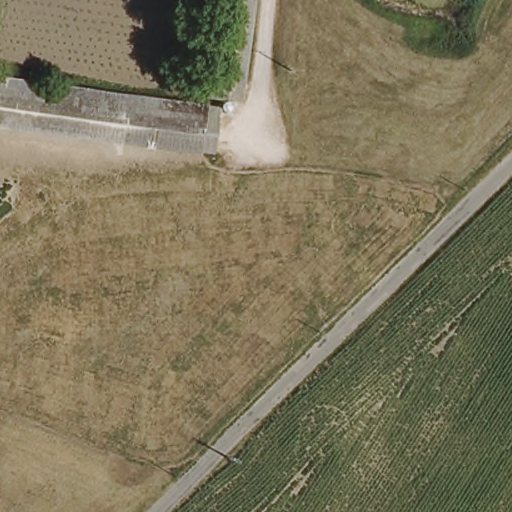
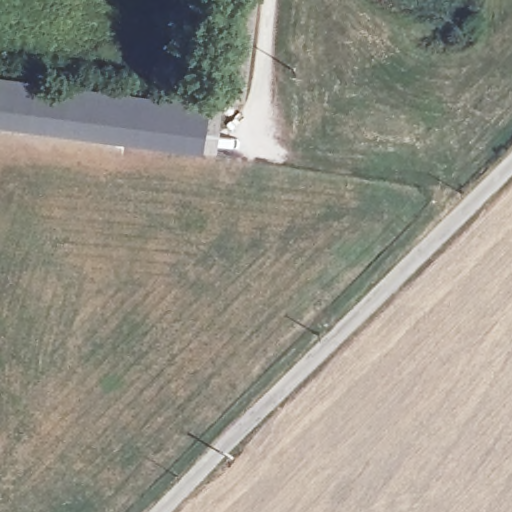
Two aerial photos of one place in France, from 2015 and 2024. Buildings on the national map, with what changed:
unchanged [(247,57),(243,103),(205,99),(214,18),(216,0),(254,0),(247,57)]
unchanged [(202,150),(193,149),(127,139),(98,135),(25,124),(1,120),(0,120),(0,79),(61,87),(199,108),(209,109),(221,111),(215,151),(202,150)]

